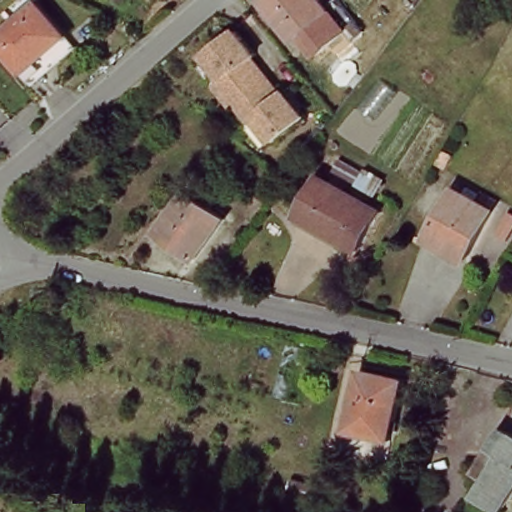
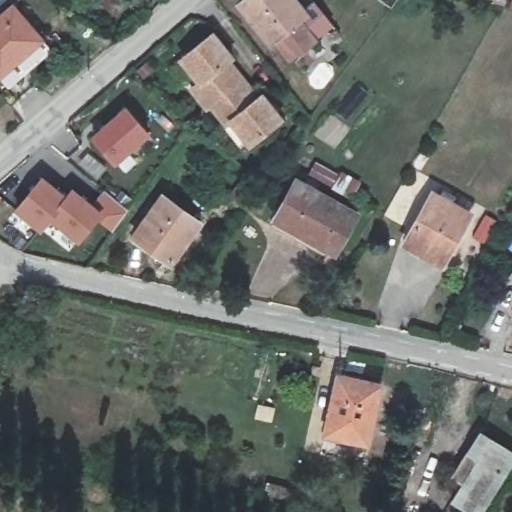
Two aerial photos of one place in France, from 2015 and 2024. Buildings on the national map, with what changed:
unchanged [(287,0),(302,19),(266,48),(236,11),(250,0),(287,0)]
unchanged [(8,10),(40,45),(0,82),(0,18),(8,10)]
unchanged [(302,19),(326,44),(290,74),(266,48),(302,19)]
unchanged [(209,39),(231,60),(224,67),(260,101),(266,94),(288,115),(260,144),(238,122),(235,127),(217,110),(214,114),(196,96),(203,89),(181,68),(209,39)]
new [(127,105),(153,134),(115,166),(90,138),(127,105)]
unchanged [(249,166),(264,176),(242,205),(229,195),(249,166)]
new [(45,175),(69,195),(75,187),(92,202),(104,191),(128,210),(114,230),(99,220),(80,243),(50,221),(41,232),(15,209),(45,175)]
unchanged [(358,220),(329,259),(272,217),(297,179),(358,220)]
unchanged [(468,217),(438,266),(405,246),(433,198),(468,217)]
unchanged [(197,216),(186,262),(137,251),(148,204),(197,216)]
unchanged [(512,274),(512,277),(511,276),(512,274)]
unchanged [(386,387),(372,446),(328,435),(343,377),(386,387)]
unchanged [(512,458),(492,512),(482,512),(462,504),(478,461),(464,457),(472,435),(512,450),(512,458)]

